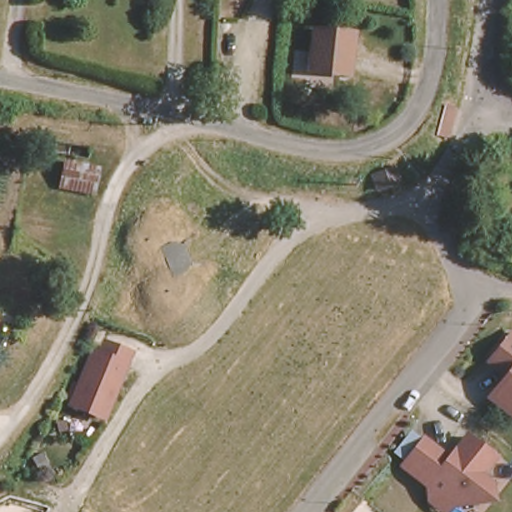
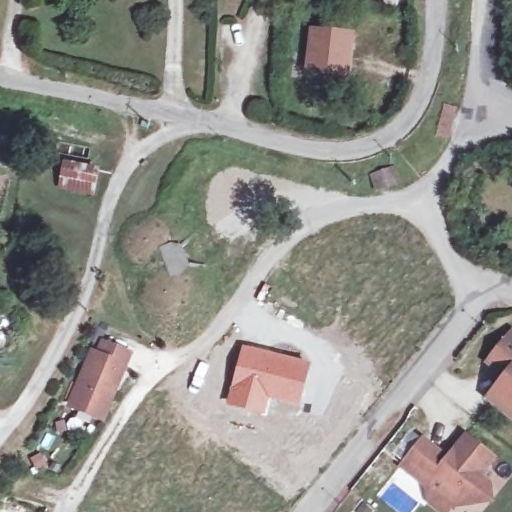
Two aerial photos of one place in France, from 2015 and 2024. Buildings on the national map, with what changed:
unchanged [(315,40),(355,37),(359,74),(342,75),(318,77),(315,40)]
unchanged [(67,163),(103,169),(98,196),(60,189),(67,163)]
unchanged [(512,424),(489,407),(505,386),(485,370),(508,341),(512,344),(512,424)]
unchanged [(102,421),(67,404),(89,351),(97,353),(102,342),(132,353),(102,421)]
new [(240,344),(312,363),(300,408),(270,400),(265,416),(225,406),(240,344)]
unchanged [(425,490),(400,471),(420,445),(438,459),(445,464),(463,441),(490,462),(475,480),(489,490),(477,506),(450,510),(447,512),(436,512),(427,505),(425,490)]

